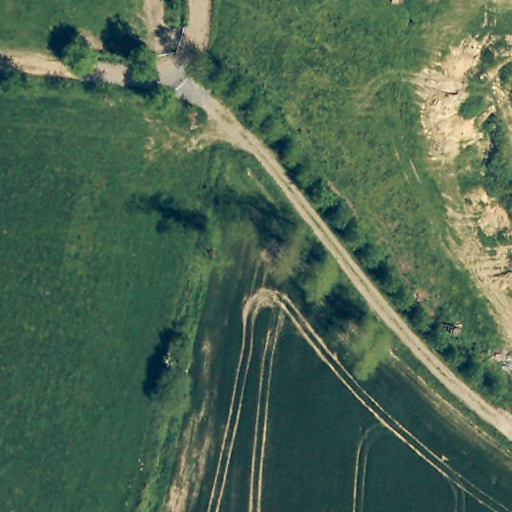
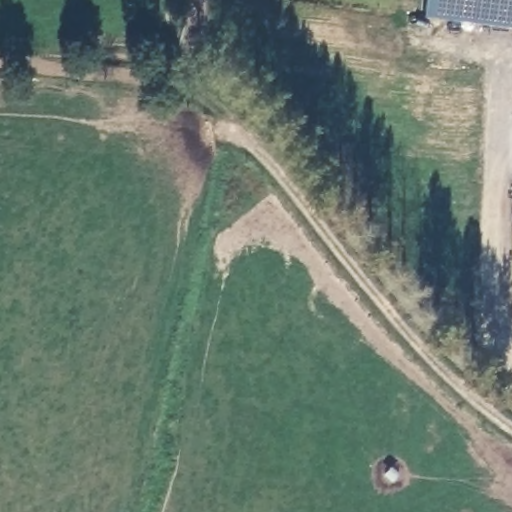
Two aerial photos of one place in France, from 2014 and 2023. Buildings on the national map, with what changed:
new [(426,0),(512,0),(512,28),(425,19),(426,0)]

